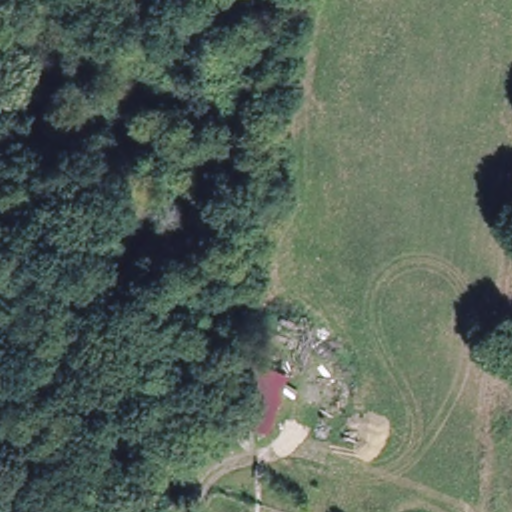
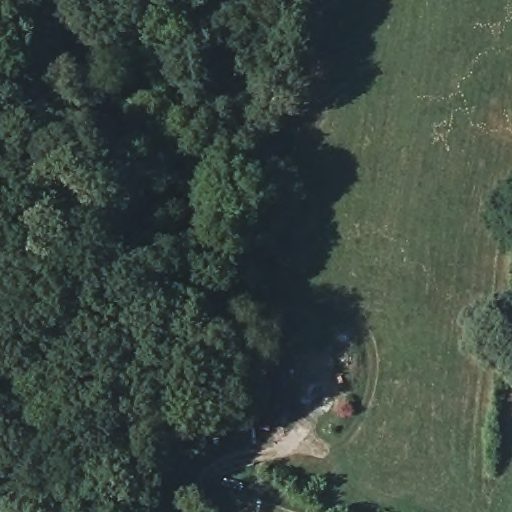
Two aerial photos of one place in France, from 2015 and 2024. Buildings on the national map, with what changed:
unchanged [(270,431),(232,419),(252,359),(289,372),(270,431)]

